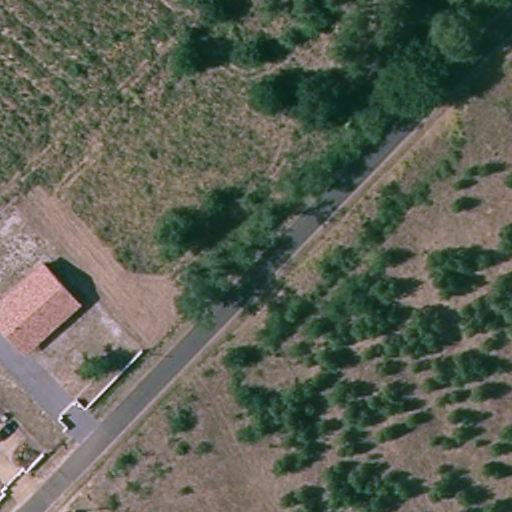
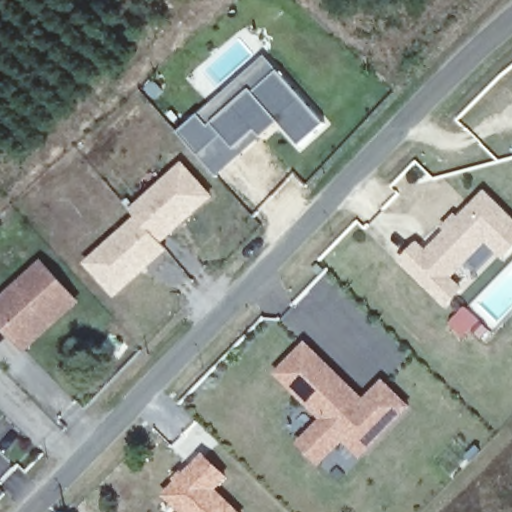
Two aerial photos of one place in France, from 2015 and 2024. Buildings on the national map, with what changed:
new [(280,121),(263,136),(219,175),(179,132),(200,115),(209,125),(213,123),(251,89),(254,91),(279,69),(325,121),(302,143),(280,121)]
new [(162,243),(168,250),(114,298),(84,262),(136,216),(129,209),(183,161),(215,197),(162,243)]
new [(512,217),(512,252),(504,260),(487,243),(453,277),(465,288),(445,307),(399,260),(418,241),(427,250),(444,230),(441,227),(453,212),(459,217),(485,191),(512,217)]
unchanged [(0,300),(44,260),(80,303),(26,356),(0,327),(0,300)]
new [(365,398),(383,379),(412,408),(362,459),(344,443),(320,467),(297,445),(321,420),(274,373),(307,340),(365,398)]
new [(194,420),(217,442),(209,450),(201,441),(183,460),(169,446),(194,420)]
new [(203,452),(229,477),(218,489),(241,512),(177,512),(161,496),(180,473),(203,452)]

